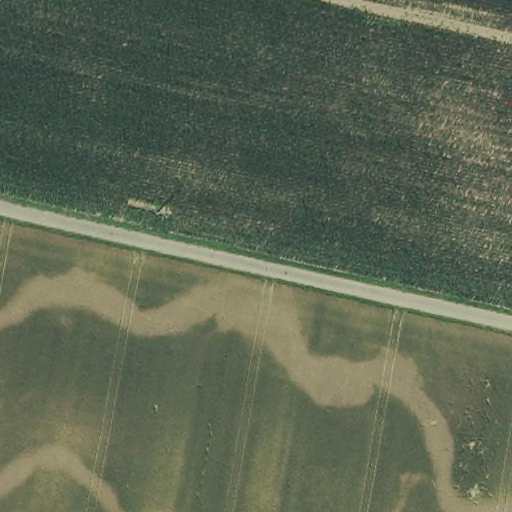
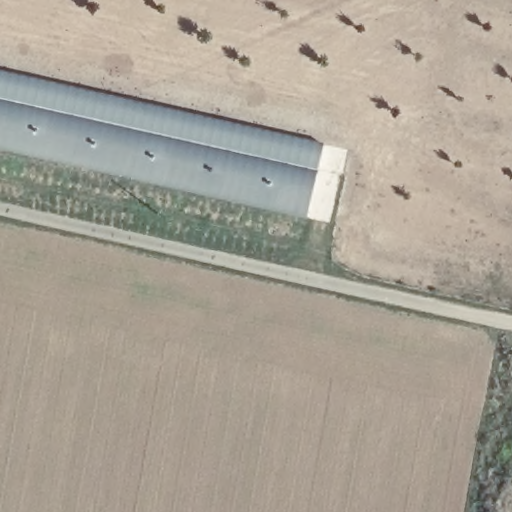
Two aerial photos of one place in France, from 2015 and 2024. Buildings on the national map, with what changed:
new [(306,216),(0,148),(0,70),(319,141),(306,216)]

